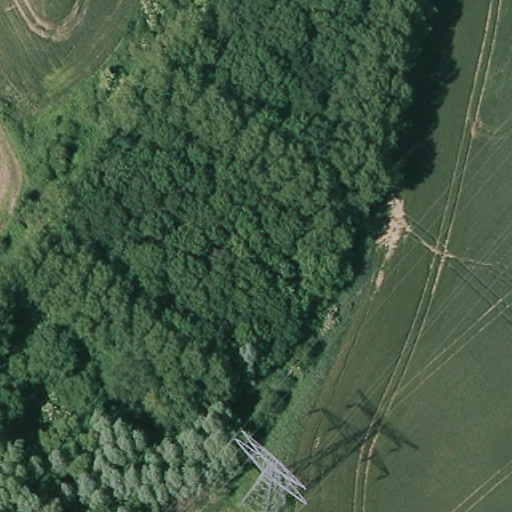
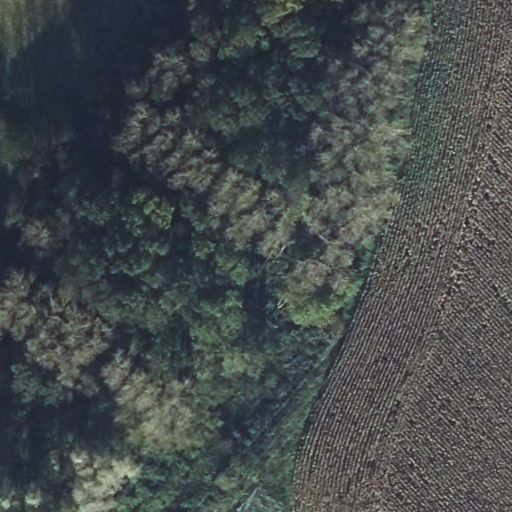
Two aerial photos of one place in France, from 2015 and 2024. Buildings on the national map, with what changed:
unchanged [(88,511),(89,512),(87,512),(88,511)]

